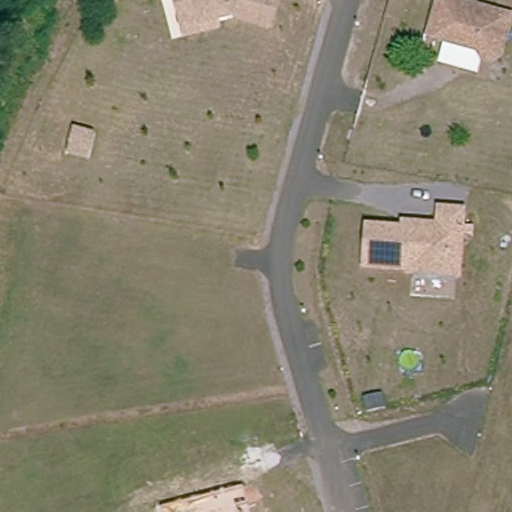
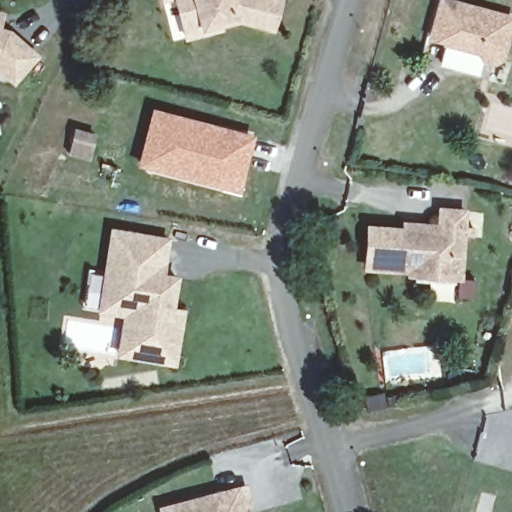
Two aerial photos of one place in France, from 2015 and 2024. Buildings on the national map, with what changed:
unchanged [(181,34),(175,11),(172,0),(273,0),(267,24),(230,15),(214,19),(215,24),(181,34)]
unchanged [(491,53),(490,58),(475,54),(477,48),(427,32),(437,0),(453,0),(507,14),(494,55),(491,53)]
new [(1,26),(9,28),(39,54),(13,84),(0,73),(0,11),(5,12),(1,26)]
new [(151,106),(252,133),(238,194),(135,165),(151,106)]
unchanged [(79,159),(70,156),(78,133),(99,140),(94,154),(91,163),(79,159)]
unchanged [(475,225),(475,237),(462,237),(460,281),(403,277),(403,272),(362,270),(365,224),(391,228),(400,226),(400,221),(436,224),(437,207),(465,208),(464,226),(475,225)]
new [(111,253),(112,253),(115,231),(169,239),(165,261),(163,275),(178,277),(174,314),(185,316),(177,368),(135,361),(143,311),(141,308),(106,303),(111,260),(111,253)]
new [(253,504),(245,507),(247,512),(159,512),(157,505),(246,482),(253,504)]

